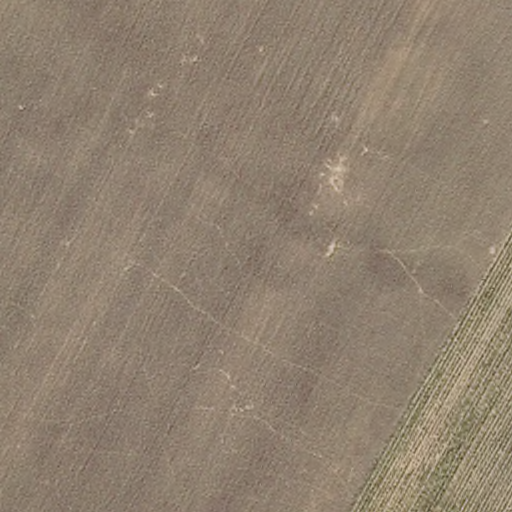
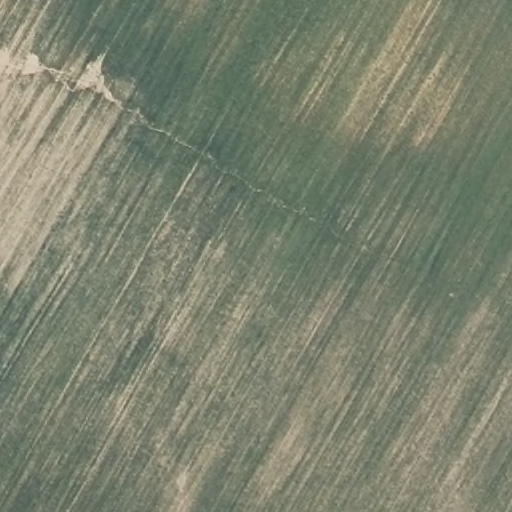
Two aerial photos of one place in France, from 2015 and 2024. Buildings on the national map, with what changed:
[]

